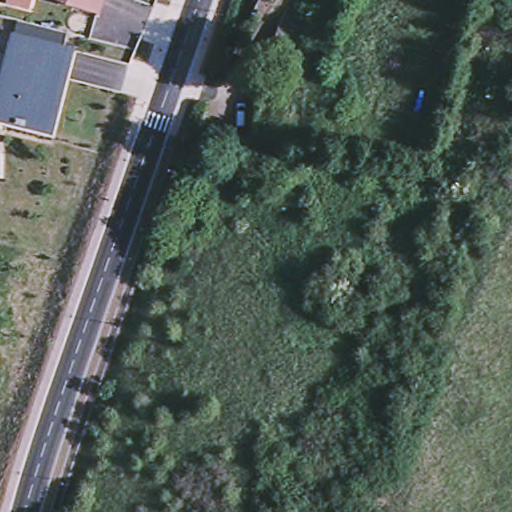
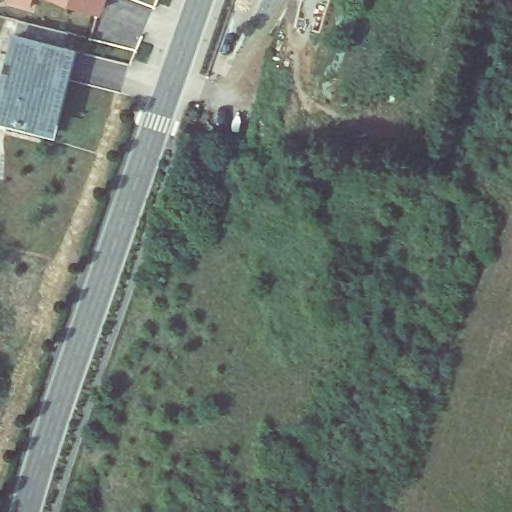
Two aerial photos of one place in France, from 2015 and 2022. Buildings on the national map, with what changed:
unchanged [(30,10),(9,5),(10,0),(32,0),(30,10)]
unchanged [(98,11),(65,0),(102,0),(98,11)]
unchanged [(46,129),(0,115),(0,89),(14,37),(15,38),(18,22),(55,32),(67,35),(65,51),(67,51),(46,129)]

